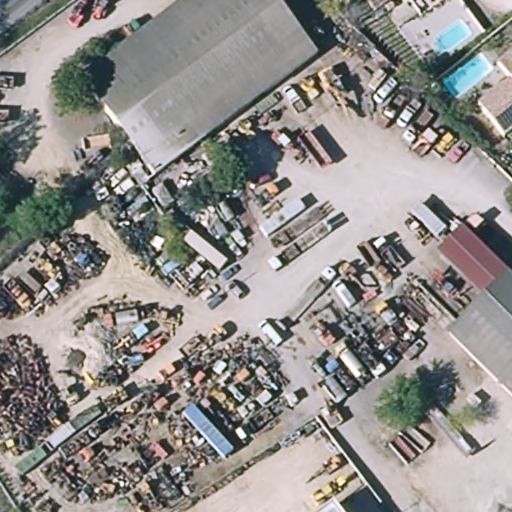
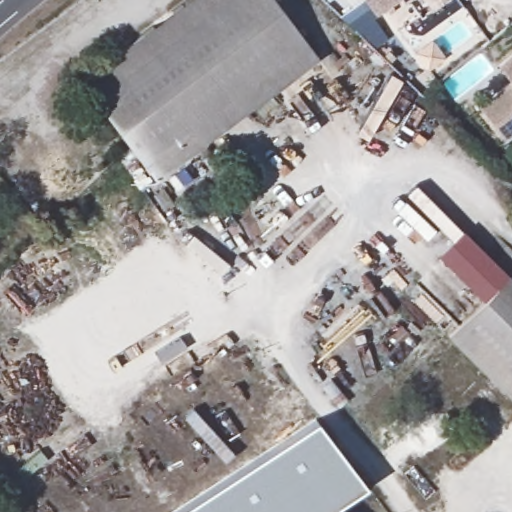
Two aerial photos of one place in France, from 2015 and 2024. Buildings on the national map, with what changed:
unchanged [(205,0),(265,0),(315,68),(156,190),(82,91),(205,0)]
unchanged [(374,14),(363,0),(393,0),(374,14)]
unchanged [(512,80),(499,64),(512,54),(512,130),(504,136),(479,105),(512,80)]
unchanged [(437,256),(460,233),(507,281),(487,302),(437,256)]
unchanged [(507,281),(512,286),(512,407),(447,342),(507,281)]
new [(364,485),(329,508),(331,512),(174,512),(316,420),(364,485)]

